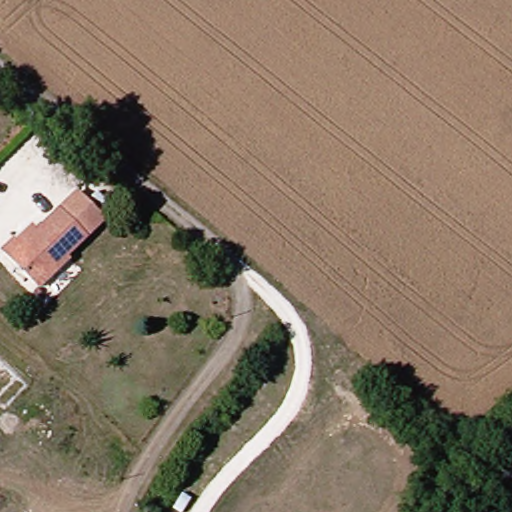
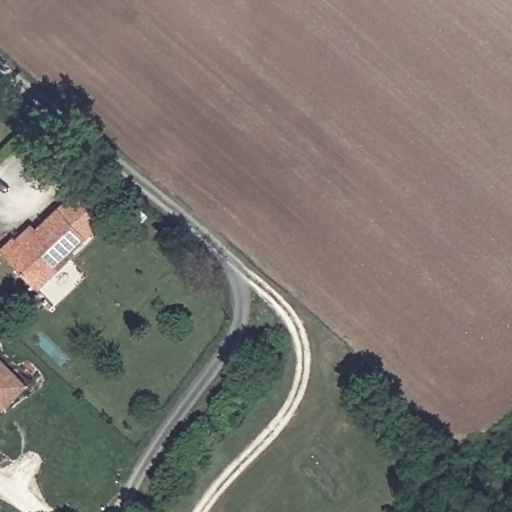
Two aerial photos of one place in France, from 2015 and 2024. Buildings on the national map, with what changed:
unchanged [(11,253),(24,238),(35,247),(70,209),(95,231),(48,284),(11,253)]
new [(32,388),(7,414),(0,409),(0,358),(32,388)]

